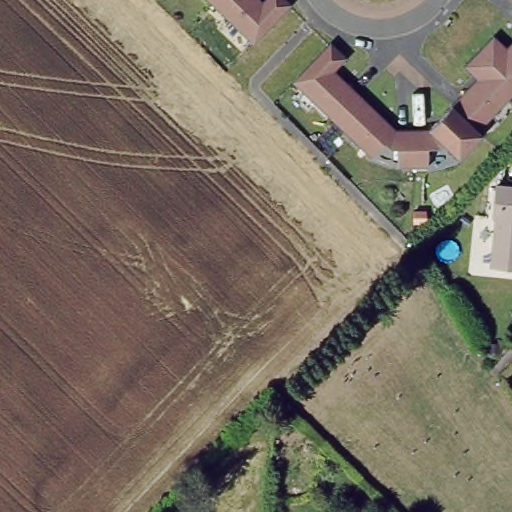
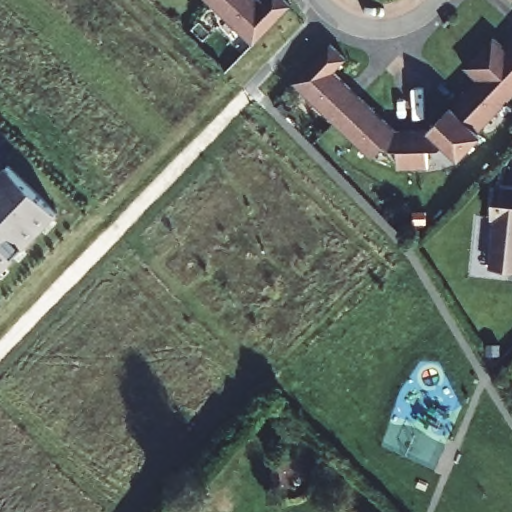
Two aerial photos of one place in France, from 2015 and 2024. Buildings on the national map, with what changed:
unchanged [(214,2),(211,0),(216,0),(214,2)]
unchanged [(216,0),(289,0),(290,2),(287,6),(257,37),(254,41),(214,2),(216,0)]
unchanged [(506,49),(512,42),(512,84),(480,52),(494,37),(506,49)]
unchanged [(335,125),(293,84),(296,81),(322,53),(330,45),(347,61),(336,72),(362,97),(335,125)]
unchanged [(464,68),(480,52),(512,84),(512,95),(477,132),(451,107),(477,81),(464,68)]
unchanged [(399,131),(416,130),(417,169),(402,169),(402,151),(391,152),(386,147),(373,161),(335,125),(362,97),(399,131)]
unchanged [(429,130),(451,107),(477,132),(482,136),(459,160),(445,146),(440,150),(433,150),(432,169),(417,169),(416,130),(429,130)]
new [(59,211),(0,271),(0,171),(9,162),(59,211)]
unchanged [(512,267),(490,265),(496,215),(492,214),(495,182),(512,184),(512,267)]

